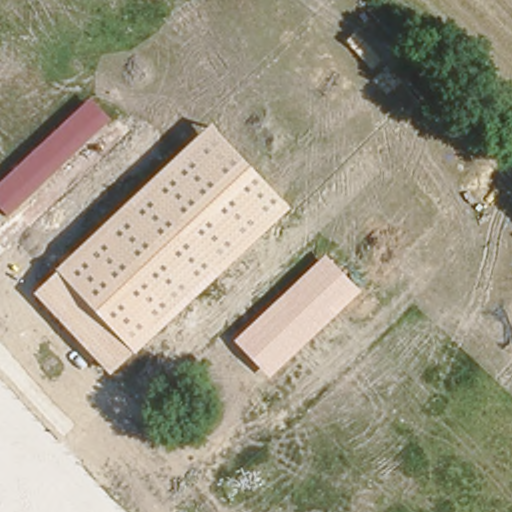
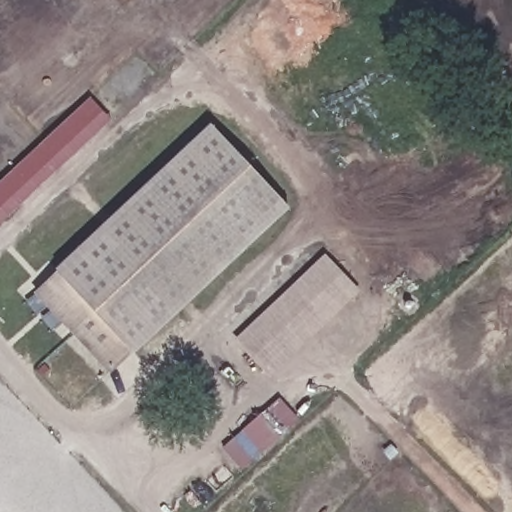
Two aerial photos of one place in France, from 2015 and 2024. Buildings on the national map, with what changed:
unchanged [(0,207),(0,182),(91,96),(113,121),(9,217),(0,207)]
unchanged [(112,375),(35,293),(59,271),(57,270),(215,124),(290,206),(112,375)]
unchanged [(270,378),(235,339),(325,253),(361,291),(270,378)]
new [(223,448),(280,397),(300,419),(243,470),(223,448)]

